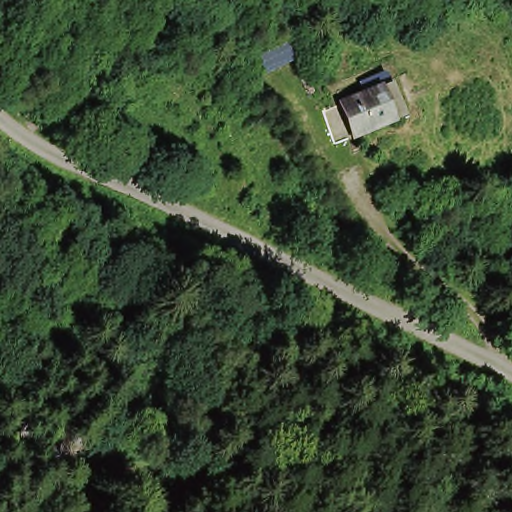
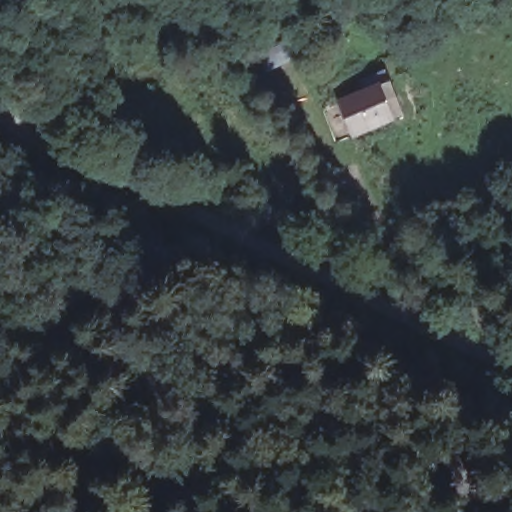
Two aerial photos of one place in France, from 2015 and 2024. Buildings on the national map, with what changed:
unchanged [(355,147),(342,114),(365,104),(360,93),(386,82),(391,94),(380,99),(393,130),(355,147)]

